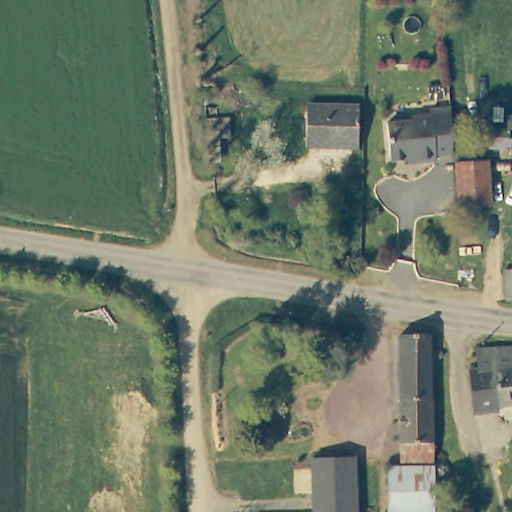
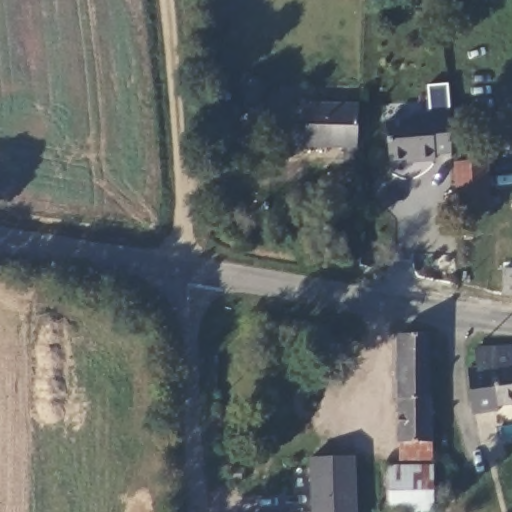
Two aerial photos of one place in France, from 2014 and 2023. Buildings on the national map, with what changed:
unchanged [(357,152),(305,150),(305,108),(358,110),(357,152)]
unchanged [(414,125),(413,121),(430,119),(430,113),(451,110),(453,135),(454,148),(455,158),(437,160),(438,166),(420,168),(419,165),(391,169),(386,129),(414,125)]
unchanged [(490,165),(492,210),(460,212),(458,167),(490,165)]
unchanged [(505,299),(507,273),(512,273),(512,300),(505,299)]
unchanged [(431,512),(387,512),(387,470),(397,470),(400,341),(431,340),(430,403),(433,403),(431,512)]
unchanged [(482,407),(481,399),(468,401),(465,372),(479,370),(476,354),(505,350),(510,351),(512,361),(512,403),(482,407)]
unchanged [(355,462),(355,512),(313,512),(312,461),(355,462)]

